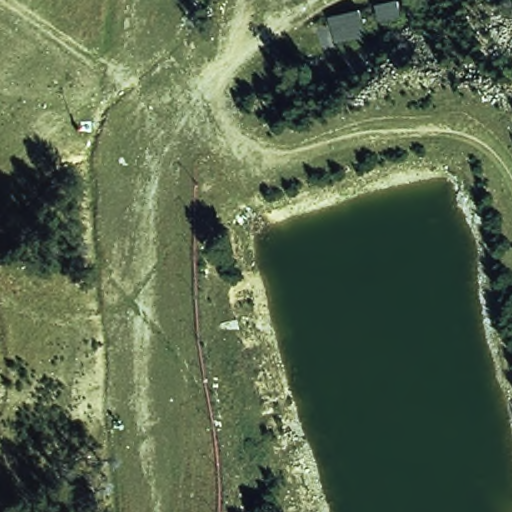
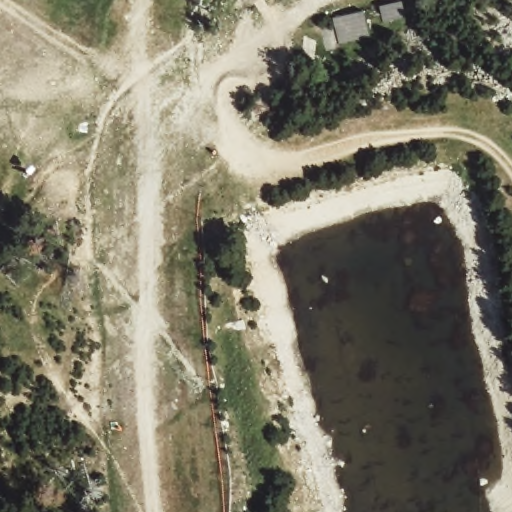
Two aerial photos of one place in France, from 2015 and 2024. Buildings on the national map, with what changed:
unchanged [(369,36),(337,42),(332,15),(362,8),(369,36)]

